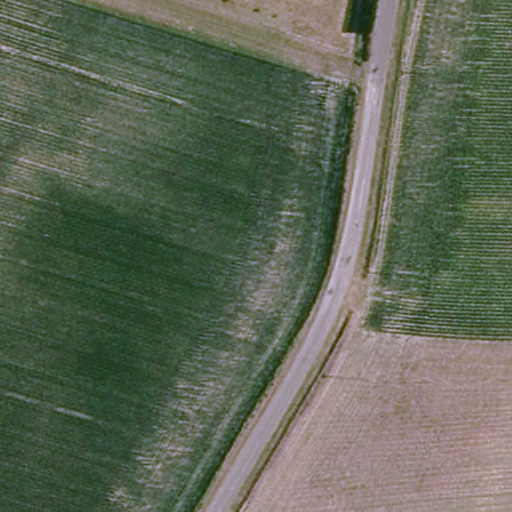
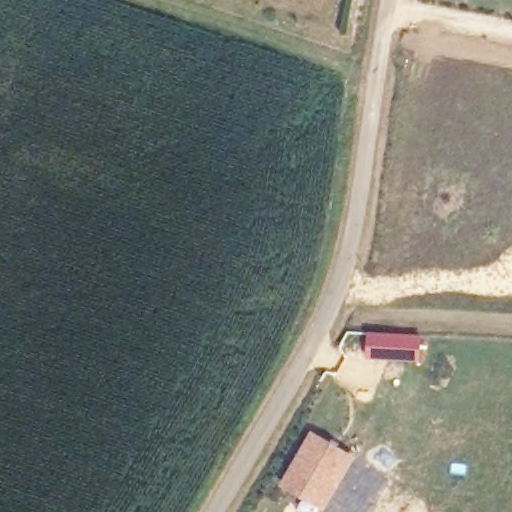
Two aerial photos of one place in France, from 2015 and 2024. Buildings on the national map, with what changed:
new [(312,431),(355,456),(324,509),(281,486),(312,431)]

